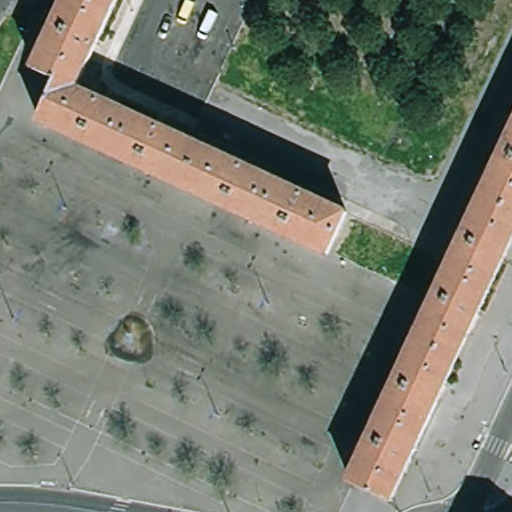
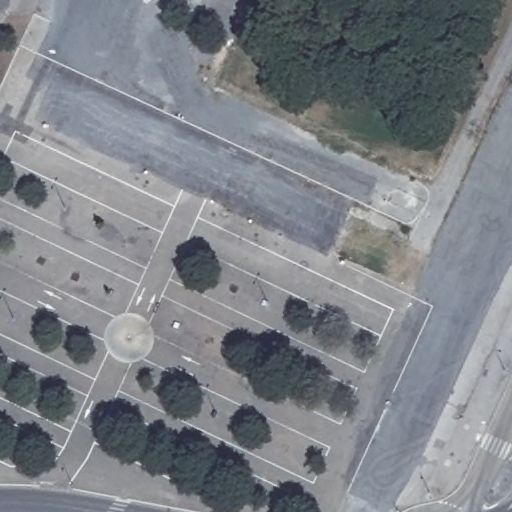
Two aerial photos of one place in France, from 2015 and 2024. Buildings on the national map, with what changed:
demolished [(350,210),(332,250),(46,119),(63,79),(41,68),(73,0),(121,0),(81,86),(350,210)]
demolished [(512,132),(512,152),(504,148),(512,132)]
demolished [(434,404),(393,386),(504,148),(512,152),(512,237),(434,404)]
demolished [(393,386),(434,404),(409,458),(368,439),(393,386)]
demolished [(409,458),(390,499),(349,480),(368,439),(409,458)]

